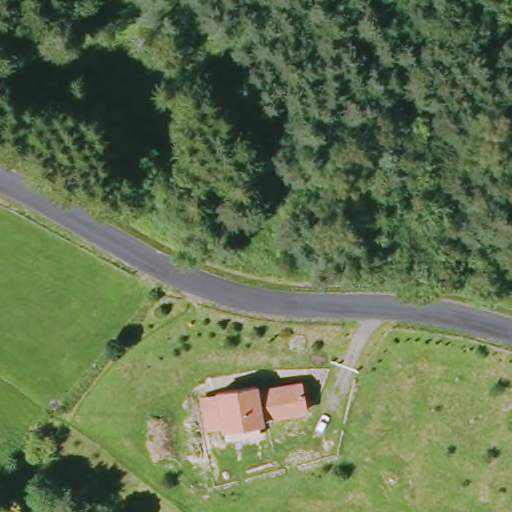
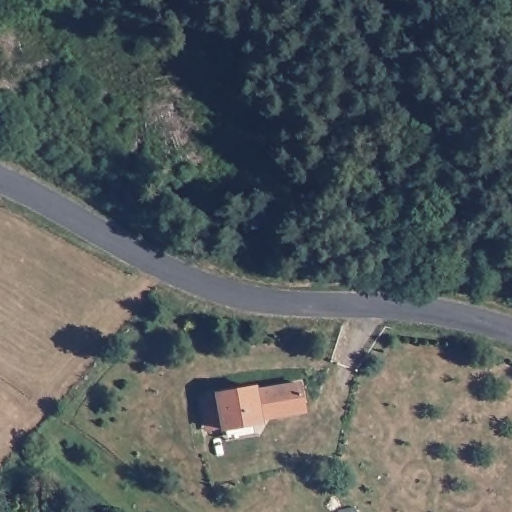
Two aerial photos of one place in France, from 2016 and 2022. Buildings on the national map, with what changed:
unchanged [(307,415),(263,420),(264,427),(222,433),(215,394),(259,387),(302,382),(307,415)]

